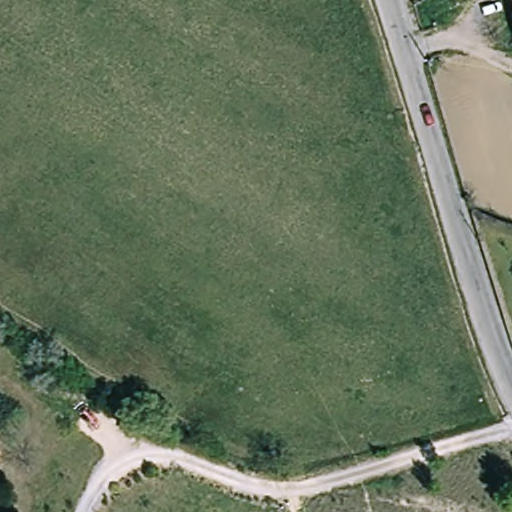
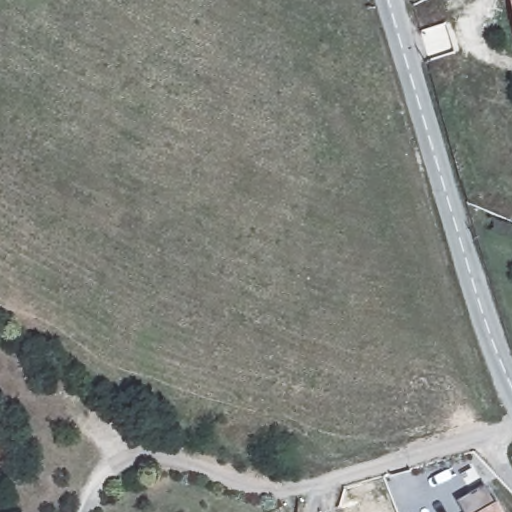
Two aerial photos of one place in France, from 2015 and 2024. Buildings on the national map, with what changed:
new [(512,0),(512,12),(509,0),(512,0)]
new [(453,501),(482,484),(498,512),(460,512),(453,501)]

